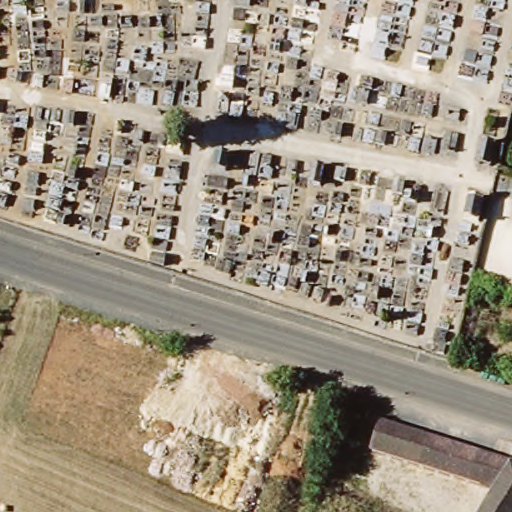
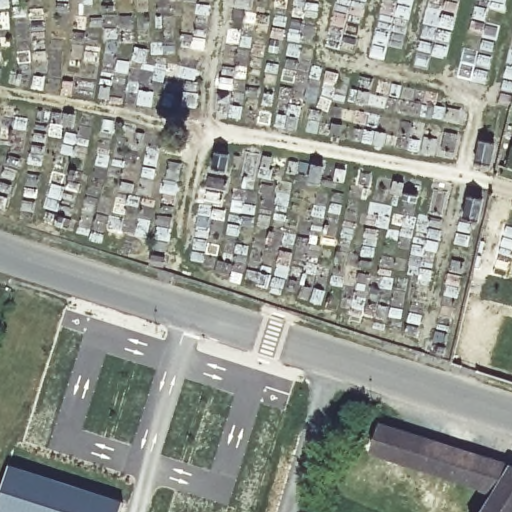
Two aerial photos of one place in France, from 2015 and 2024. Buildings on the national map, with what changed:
unchanged [(438,475),(374,455),(384,427),(448,447),(438,475)]
unchanged [(512,467),(498,495),(438,475),(448,447),(512,466),(512,467)]
unchanged [(512,512),(489,512),(498,495),(512,467),(512,512)]
new [(123,503),(121,512),(0,512),(0,494),(8,468),(123,503)]

